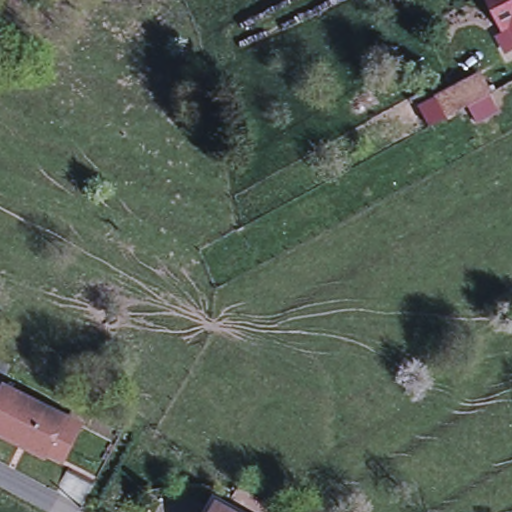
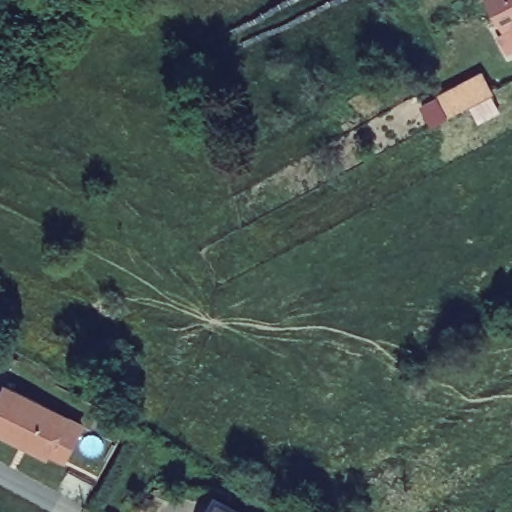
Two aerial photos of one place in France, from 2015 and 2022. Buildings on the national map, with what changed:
unchanged [(512,43),(504,47),(494,28),(499,26),(485,0),(512,0),(512,43)]
unchanged [(492,93),(447,116),(440,100),(484,77),(492,93)]
unchanged [(17,442),(0,433),(0,395),(5,385),(66,416),(47,452),(45,456),(17,442)]
unchanged [(212,512),(219,500),(240,512),(212,512)]

